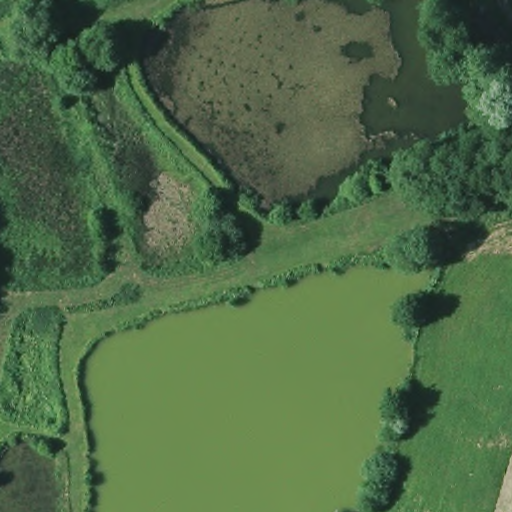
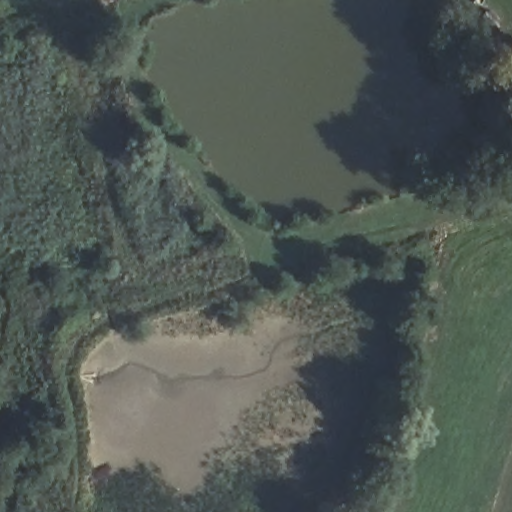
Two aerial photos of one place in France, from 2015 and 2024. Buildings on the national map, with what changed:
unchanged [(481,5),(494,14),(488,22),(499,31),(489,44),(478,35),(469,46),(457,36),(465,25),(481,5)]

